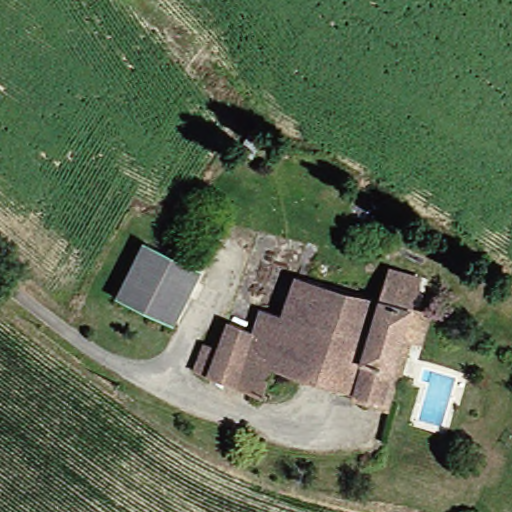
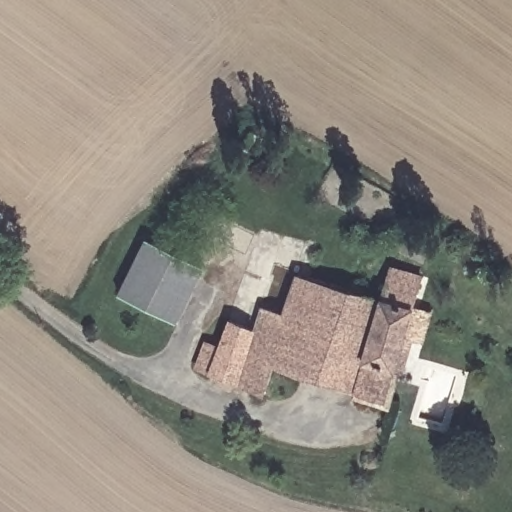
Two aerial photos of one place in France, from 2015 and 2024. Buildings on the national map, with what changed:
unchanged [(192,267),(165,321),(109,293),(137,238),(192,267)]
unchanged [(373,298),(382,267),(411,275),(376,401),(345,391),(263,365),(255,393),(227,384),(228,382),(245,329),(252,306),(275,313),(288,273),(373,298)]
unchanged [(228,382),(187,367),(196,342),(211,347),(221,320),(245,329),(228,382)]

